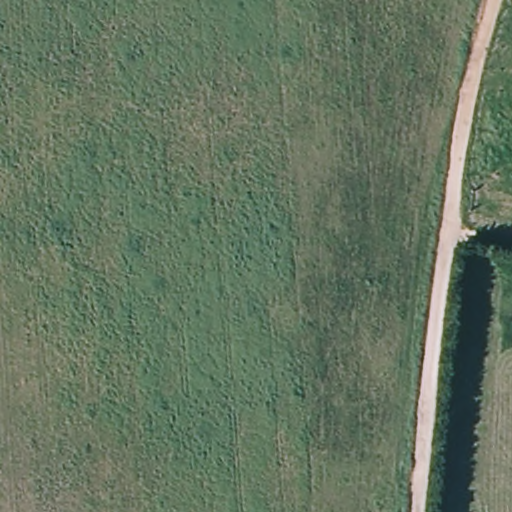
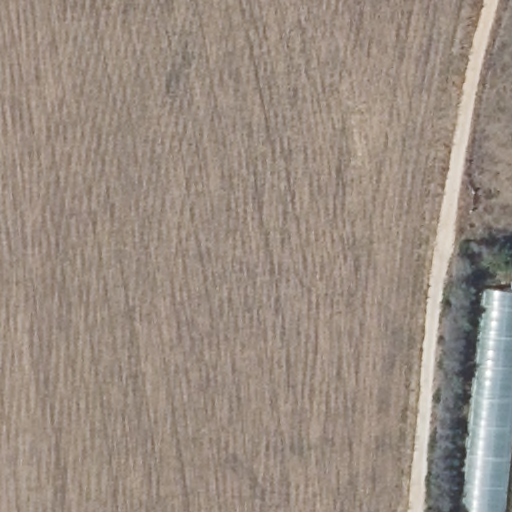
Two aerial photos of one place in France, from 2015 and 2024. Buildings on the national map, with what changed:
new [(484,284),(512,288),(512,512),(460,512),(484,284)]

